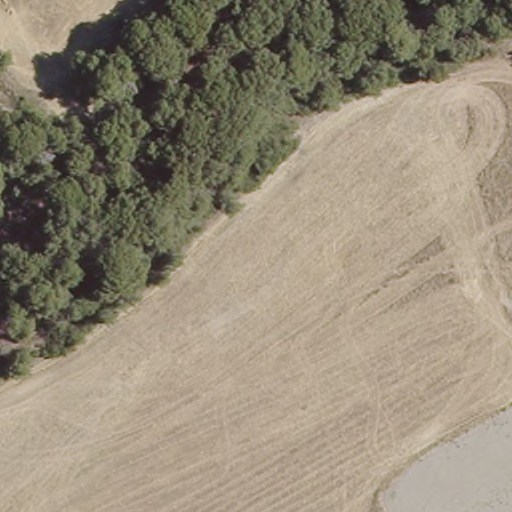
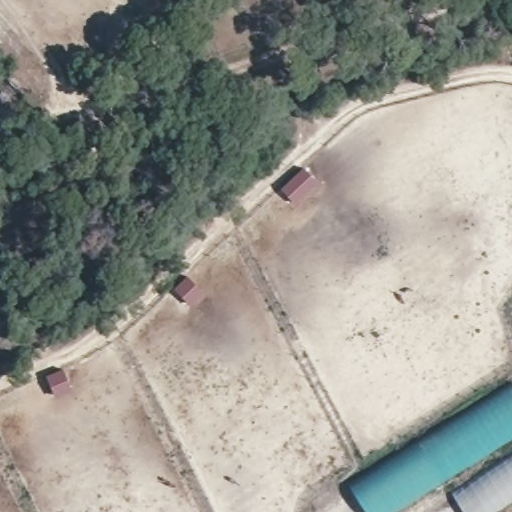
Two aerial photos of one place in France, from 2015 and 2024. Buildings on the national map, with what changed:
new [(367,512),(349,484),(512,382),(512,437),(393,512),(367,512)]
new [(491,512),(469,512),(454,489),(512,453),(512,498),(491,512)]

